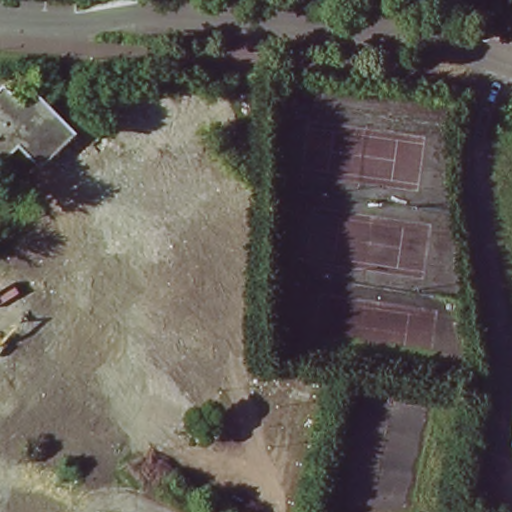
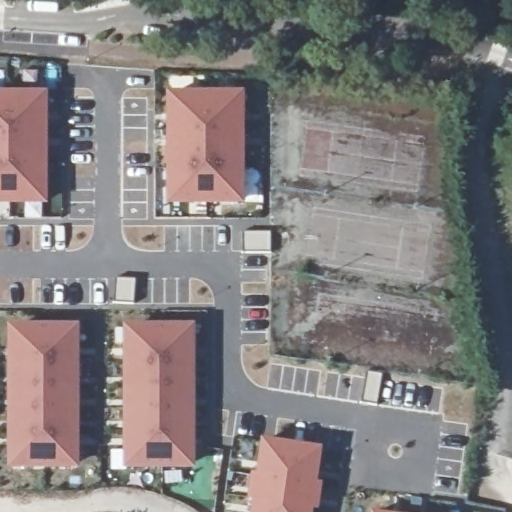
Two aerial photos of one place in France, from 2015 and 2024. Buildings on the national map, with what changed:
demolished [(40,163),(24,146),(15,138),(0,153),(0,152),(0,95),(3,91),(15,103),(13,105),(17,110),(31,95),(54,117),(70,134),(40,163)]
new [(242,91),(240,205),(163,204),(163,91),(242,91)]
new [(43,93),(45,205),(0,206),(0,93),(43,93)]
demolished [(48,357),(67,337),(55,325),(121,257),(60,194),(140,116),(216,194),(128,285),(189,345),(163,373),(150,359),(100,410),(50,358),(48,357)]
new [(192,326),(191,471),(120,471),(120,324),(192,326)]
new [(76,326),(77,471),(6,471),(6,326),(76,326)]
new [(321,448),(314,483),(321,485),(316,510),(311,508),(311,512),(252,512),(255,501),(248,500),(254,473),(259,475),(265,440),(321,448)]

